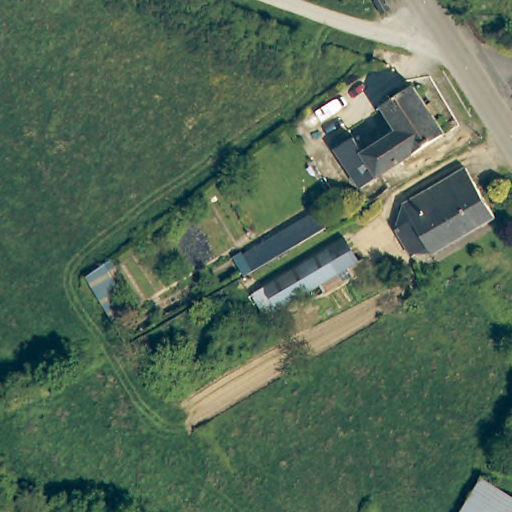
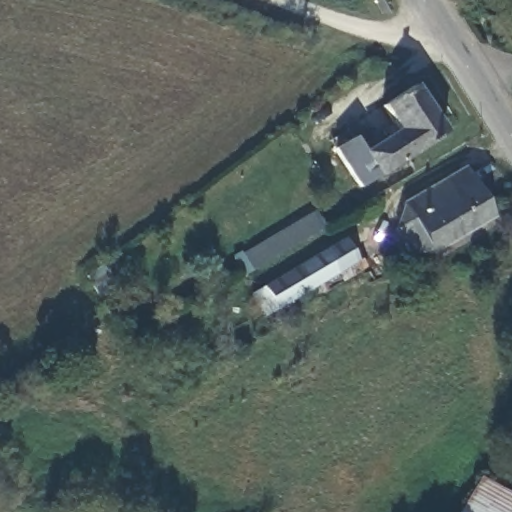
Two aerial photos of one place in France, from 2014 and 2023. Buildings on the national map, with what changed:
unchanged [(380,129),(391,122),(380,105),(412,83),(443,131),(375,176),(358,188),(331,149),(349,138),(360,153),(384,136),(380,129)]
unchanged [(424,245),(408,255),(392,229),(409,218),(399,203),(464,166),(492,215),(470,229),(430,252),(424,245)]
unchanged [(229,258),(312,207),(324,227),(255,268),(240,277),(229,258)]
unchanged [(347,235),(361,259),(265,316),(250,293),(347,235)]
unchanged [(101,264),(114,283),(109,286),(126,314),(111,322),(108,317),(84,277),(101,264)]
unchanged [(480,477),(482,478),(512,496),(512,512),(459,512),(480,477)]

